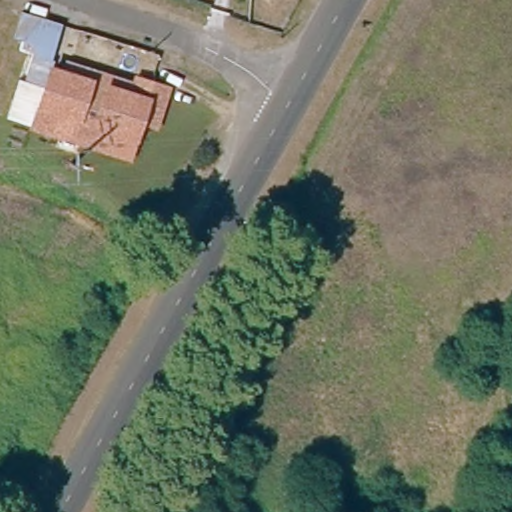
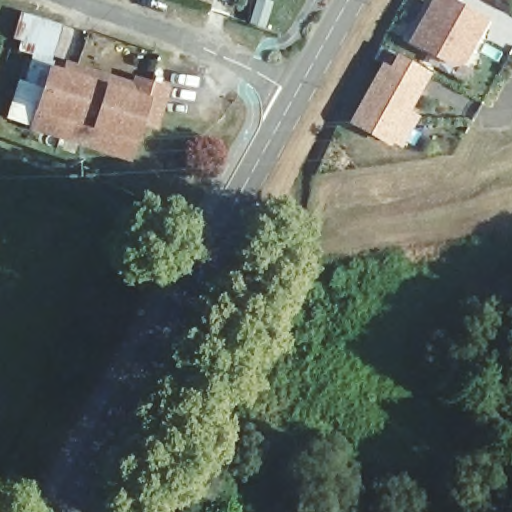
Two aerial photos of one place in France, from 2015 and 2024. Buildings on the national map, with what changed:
new [(466,65),(459,60),(454,67),(407,42),(431,0),(456,0),(490,19),(466,65)]
unchanged [(52,60),(32,55),(22,51),(25,42),(15,38),(25,12),(65,24),(55,52),(52,60)]
unchanged [(0,118),(14,77),(23,81),(32,55),(52,60),(55,52),(146,83),(150,92),(130,155),(33,128),(0,118)]
new [(390,66),(397,53),(433,73),(411,111),(418,115),(403,146),(392,140),(389,146),(347,124),(383,61),(390,66)]
unchanged [(170,257),(154,287),(140,278),(155,250),(170,257)]

